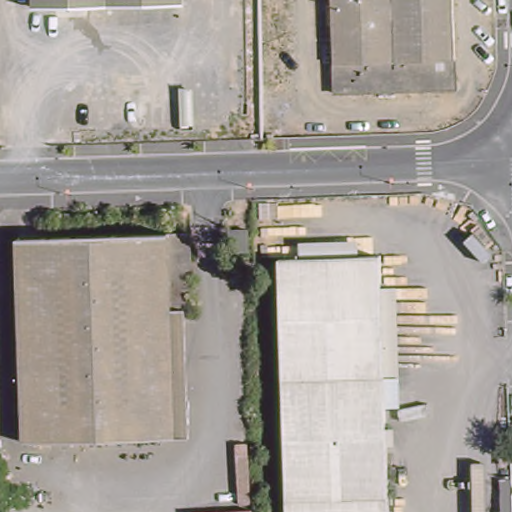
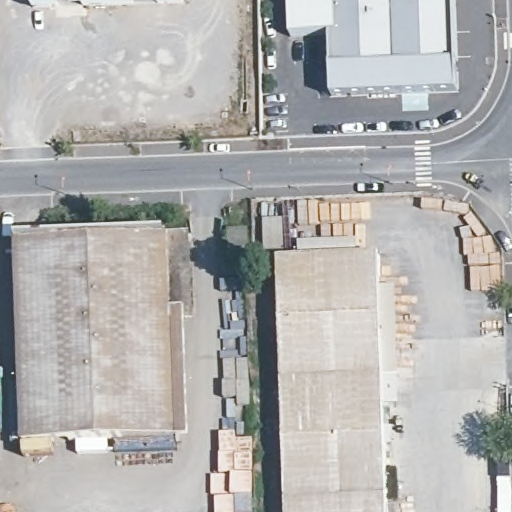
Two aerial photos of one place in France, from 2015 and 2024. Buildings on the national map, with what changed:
unchanged [(35,8),(34,0),(183,0),(183,4),(35,8)]
new [(331,0),(332,35),(290,36),(289,0),(331,0)]
unchanged [(334,102),(331,0),(452,0),(456,99),(334,102)]
unchanged [(170,245),(187,245),(190,325),(172,325),(173,447),(23,449),(18,286),(17,249),(168,244),(170,245)]
unchanged [(377,261),(382,397),(386,512),(286,512),(283,431),(278,262),(377,261)]

